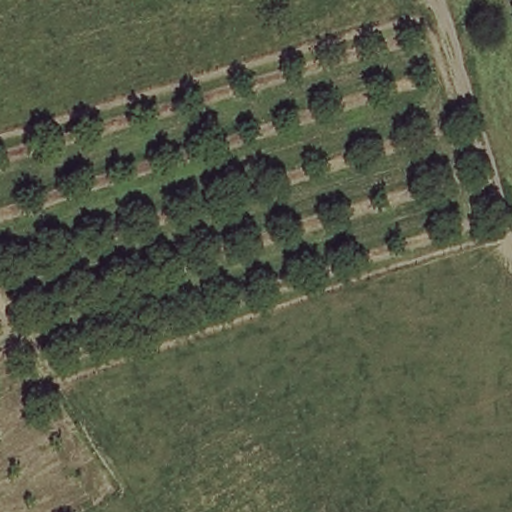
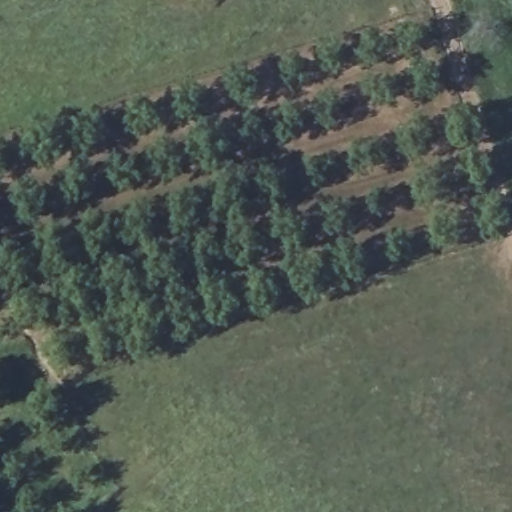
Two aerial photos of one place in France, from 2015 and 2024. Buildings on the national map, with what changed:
[]

